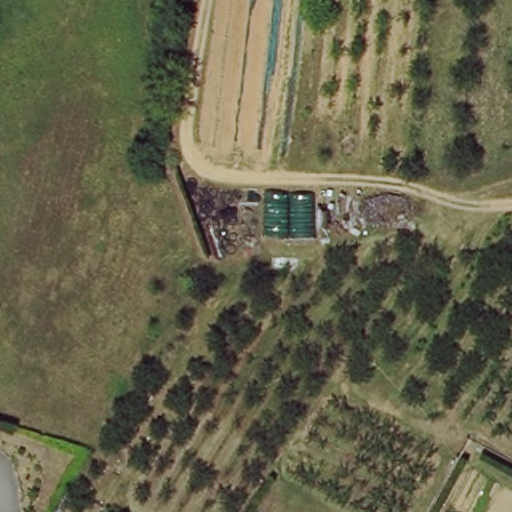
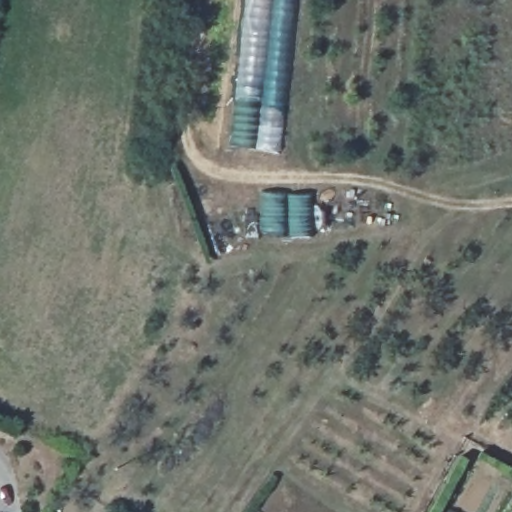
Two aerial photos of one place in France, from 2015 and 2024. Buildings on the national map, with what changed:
new [(281,155),(225,153),(243,0),(298,0),(281,155)]

